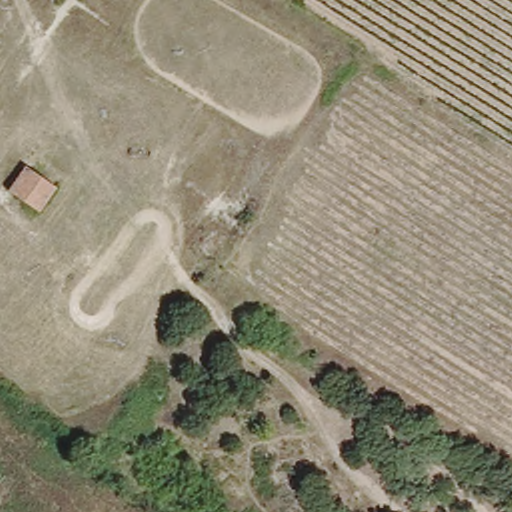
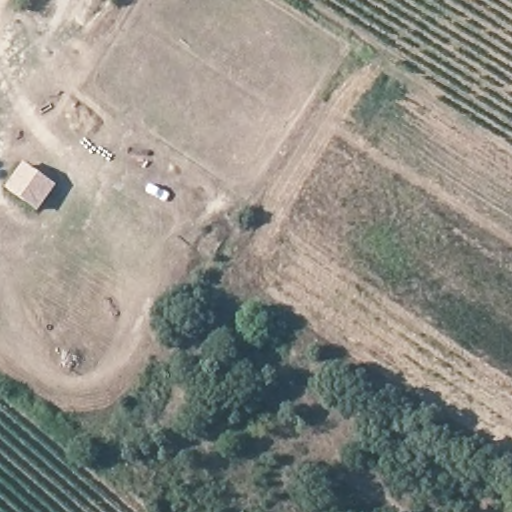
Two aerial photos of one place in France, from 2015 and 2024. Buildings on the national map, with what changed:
unchanged [(32,213),(2,192),(21,166),(50,184),(32,213)]

